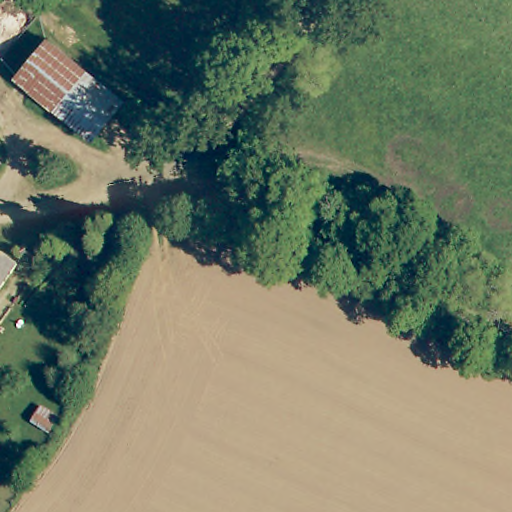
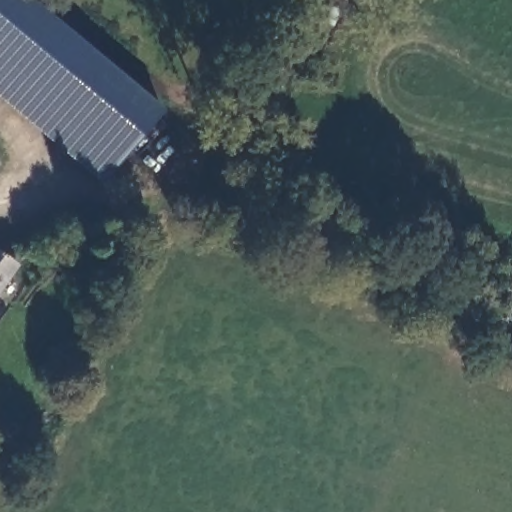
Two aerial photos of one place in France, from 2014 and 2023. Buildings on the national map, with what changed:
new [(0,98),(0,0),(36,0),(165,109),(103,183),(0,98)]
unchanged [(0,162),(0,159),(1,160),(0,162)]
unchanged [(0,293),(0,245),(23,260),(0,293)]

